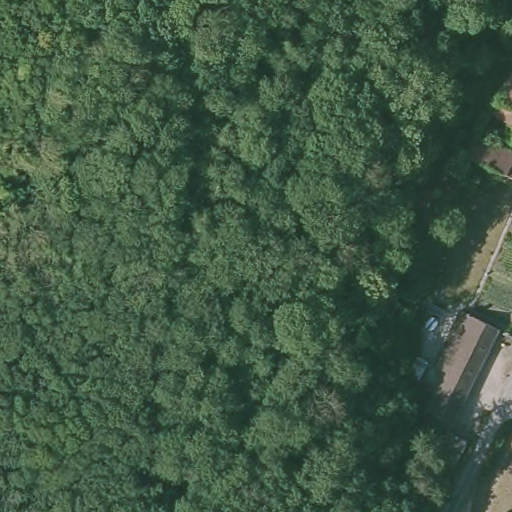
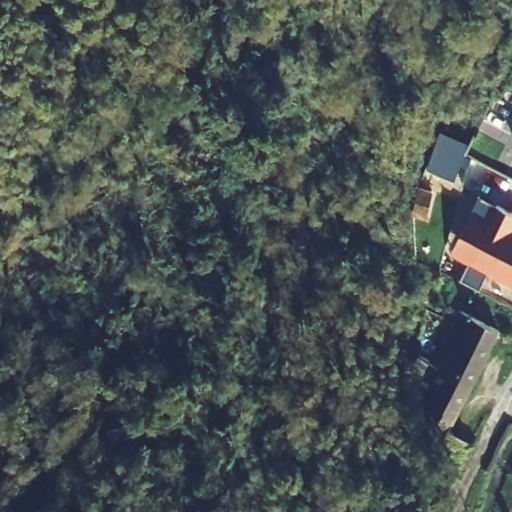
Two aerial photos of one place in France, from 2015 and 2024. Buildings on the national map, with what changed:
demolished [(470,136),(474,129),(512,147),(512,159),(512,175),(462,151),(470,136)]
new [(440,133),(467,144),(464,155),(472,157),(467,169),(460,166),(455,181),(426,171),(440,133)]
new [(486,273),(480,289),(460,280),(468,264),(450,255),(480,196),(512,213),(512,286),(486,273)]
unchanged [(497,321),(442,429),(465,442),(447,477),(425,466),(434,448),(425,443),(429,436),(417,429),(429,407),(425,405),(447,363),(433,355),(460,302),(497,321)]
unchanged [(414,357),(418,348),(428,353),(423,362),(414,357)]

